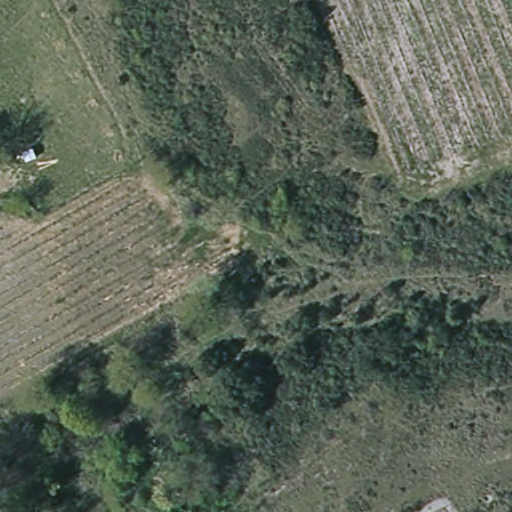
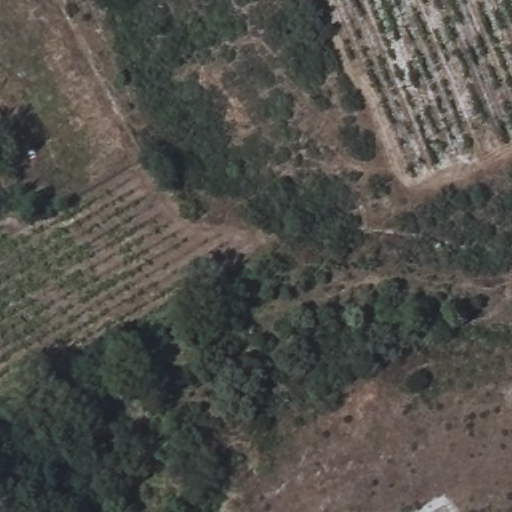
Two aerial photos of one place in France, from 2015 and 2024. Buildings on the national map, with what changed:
[]

